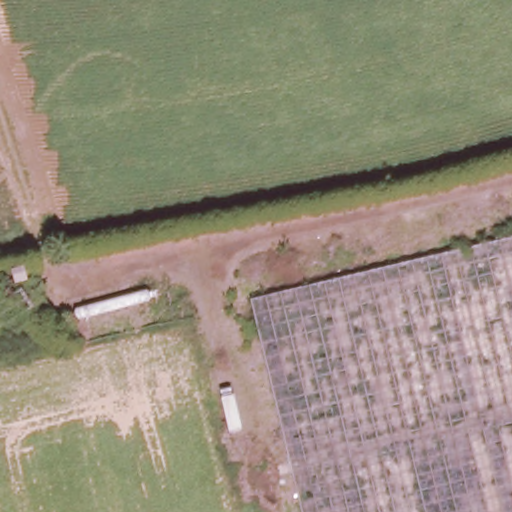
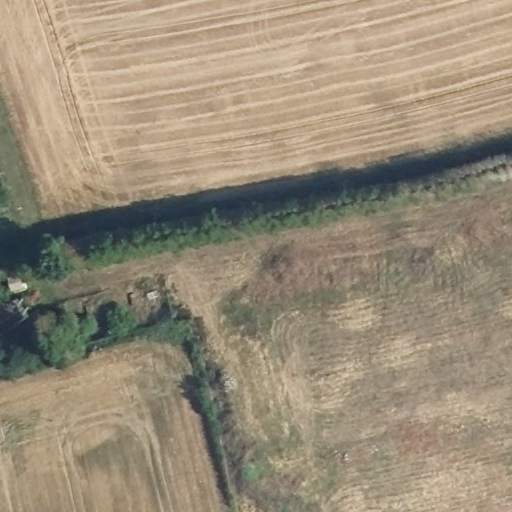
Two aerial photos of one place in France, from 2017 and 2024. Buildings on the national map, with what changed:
demolished [(246,294),(512,232),(512,512),(301,512),(246,294)]

